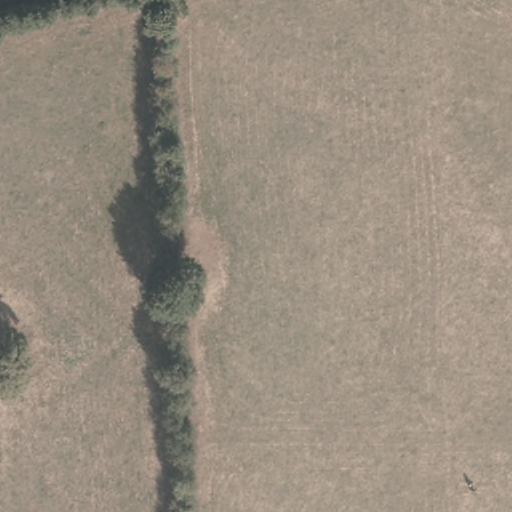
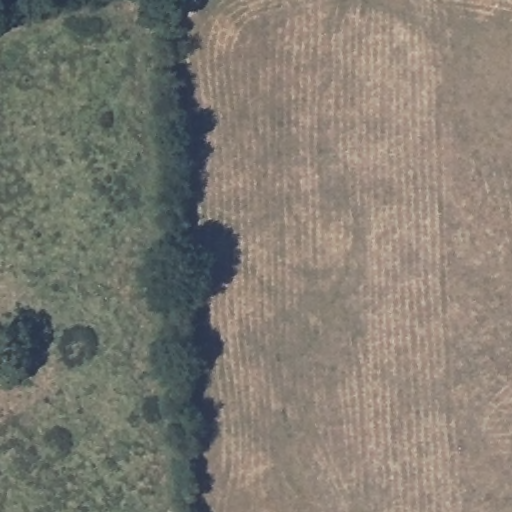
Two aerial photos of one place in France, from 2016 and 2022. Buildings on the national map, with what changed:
[]

